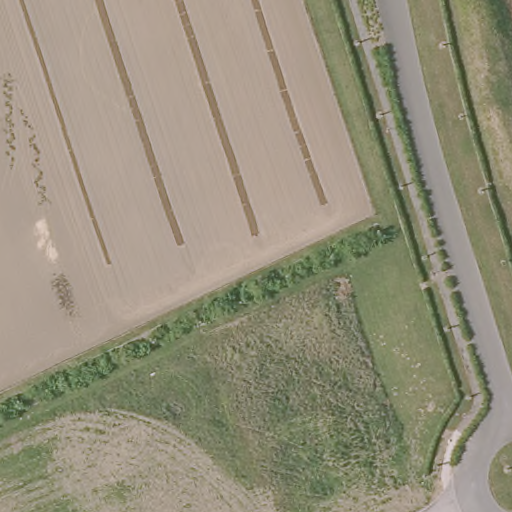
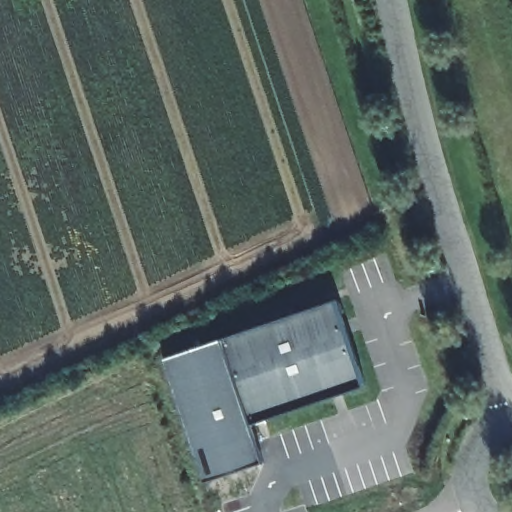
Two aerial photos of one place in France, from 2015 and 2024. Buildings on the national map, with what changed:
new [(367,386),(252,425),(265,463),(205,483),(163,358),(337,300),(367,386)]

